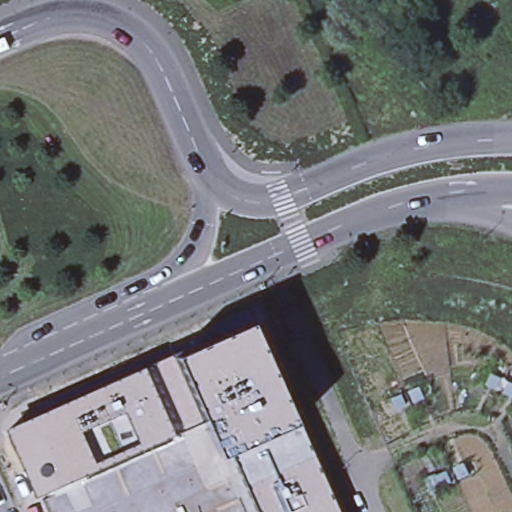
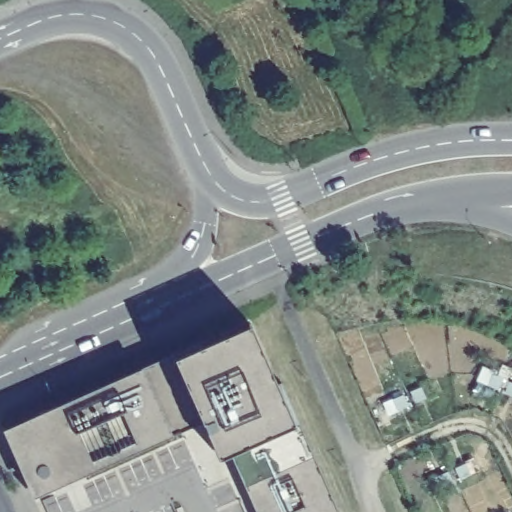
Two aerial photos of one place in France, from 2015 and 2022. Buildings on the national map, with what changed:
unchanged [(202,344),(250,323),(277,383),(281,381),(297,419),(230,452),(219,457),(203,422),(174,353),(201,340),(202,344)]
unchanged [(37,417),(36,415),(174,353),(203,422),(79,477),(34,497),(32,494),(35,492),(7,430),(37,417)]
unchanged [(297,419),(339,512),(256,512),(230,452),(297,419)]

